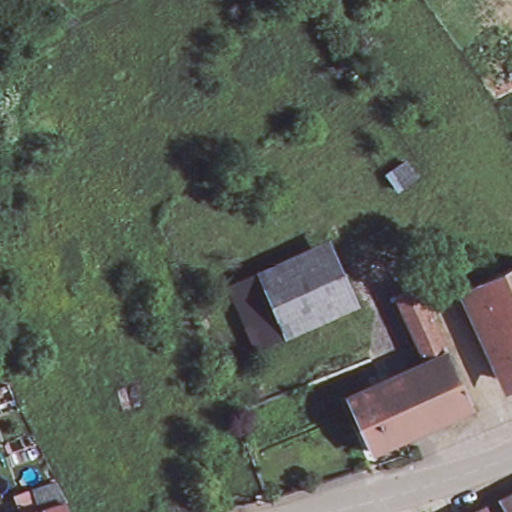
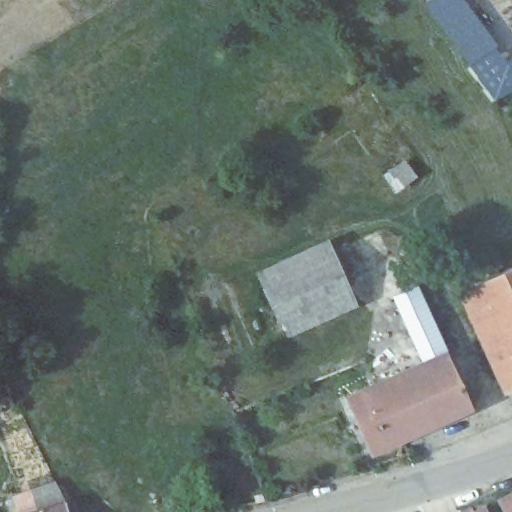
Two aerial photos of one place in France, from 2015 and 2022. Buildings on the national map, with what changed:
new [(512,64),(512,91),(496,99),(427,3),(432,0),(463,0),(512,64)]
demolished [(512,72),(509,75),(454,0),(492,0),(510,23),(512,26),(512,72)]
unchanged [(512,106),(509,101),(512,99),(512,106)]
unchanged [(417,174),(397,188),(388,176),(409,161),(417,174)]
unchanged [(334,255),(353,294),(282,326),(264,286),(334,255)]
unchanged [(512,376),(473,289),(512,271),(512,376)]
unchanged [(425,357),(397,289),(419,279),(473,403),(404,434),(373,449),(348,393),(380,378),(425,357)]
unchanged [(264,286),(282,326),(248,341),(231,300),(264,286)]
unchanged [(35,488),(59,479),(69,498),(73,512),(28,512),(21,493),(35,488)]
unchanged [(512,512),(504,512),(498,501),(512,494),(512,512)]
unchanged [(490,512),(474,512),(487,506),(490,512)]

